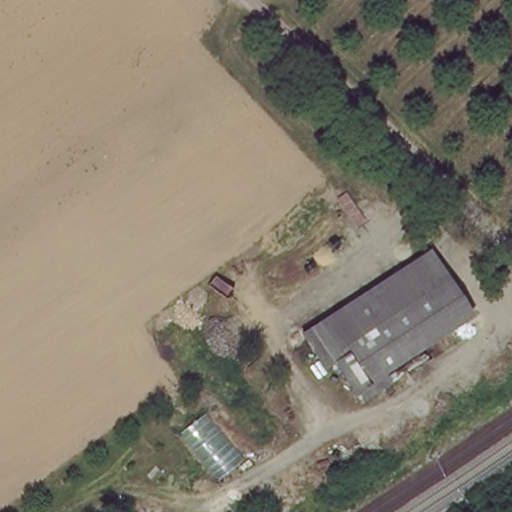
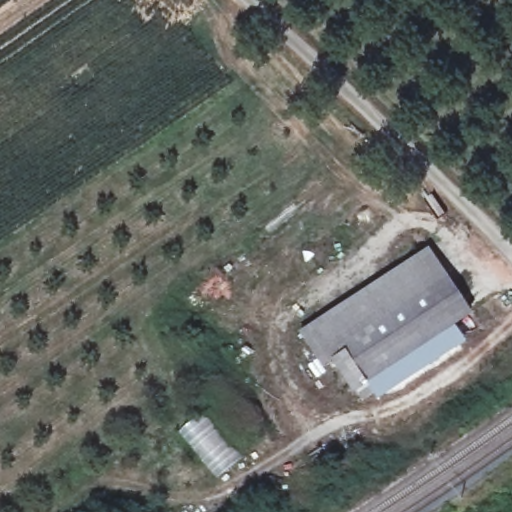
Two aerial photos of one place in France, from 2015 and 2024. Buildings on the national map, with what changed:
unchanged [(420,250),(439,278),(335,347),(314,361),(295,329),(420,250)]
unchanged [(463,313),(358,382),(335,347),(439,278),(463,313)]

